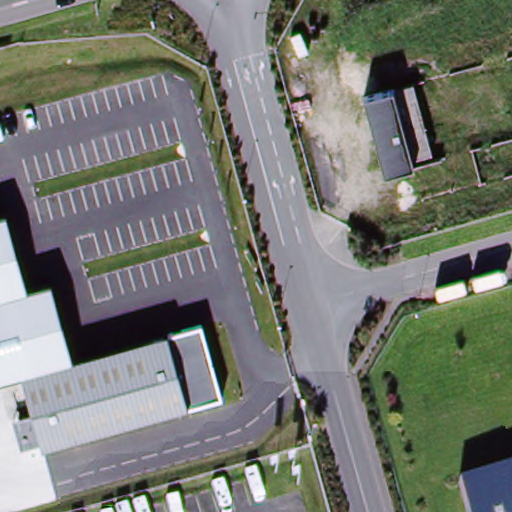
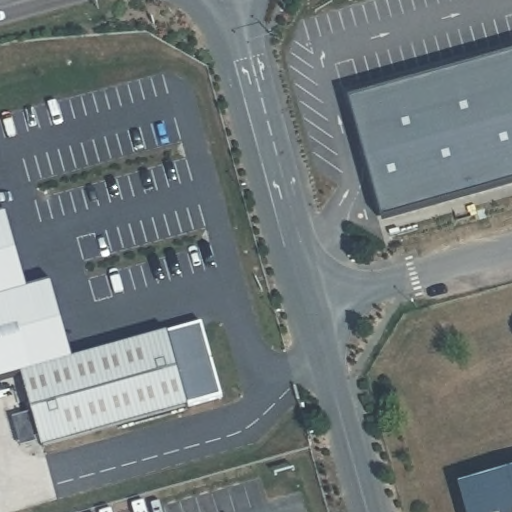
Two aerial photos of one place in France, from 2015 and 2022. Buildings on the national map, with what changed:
new [(383,217),(349,99),(512,53),(512,183),(383,217)]
demolished [(364,99),(391,91),(411,85),(432,159),(413,165),(385,175),(364,99)]
unchanged [(27,289),(50,283),(73,359),(24,372),(0,380),(0,214),(6,212),(27,289)]
unchanged [(223,395),(44,445),(33,407),(24,372),(202,322),(212,356),(223,395)]
unchanged [(512,474),(512,512),(468,512),(461,488),(512,474)]

